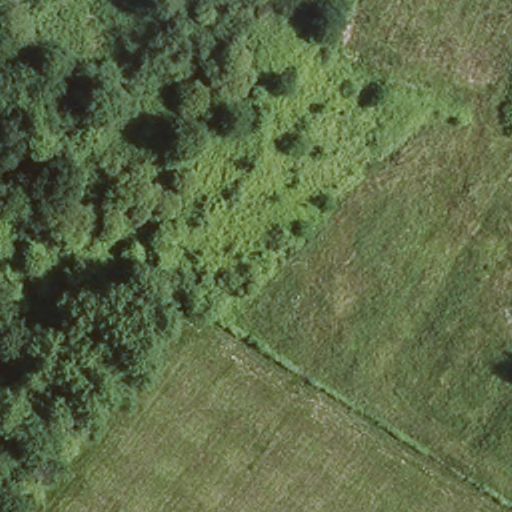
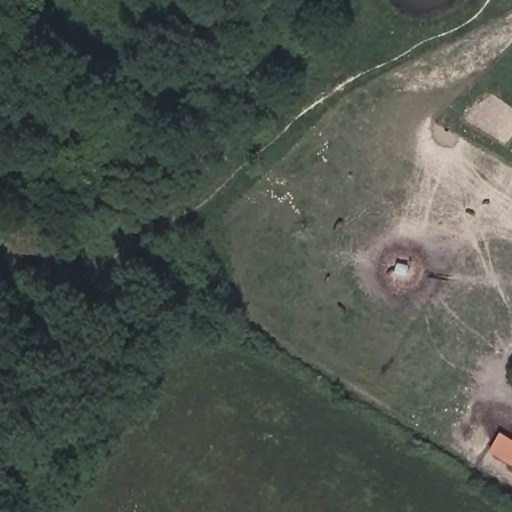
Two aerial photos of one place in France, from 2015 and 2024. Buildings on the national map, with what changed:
new [(490,451),(502,431),(512,437),(512,464),(490,451)]

